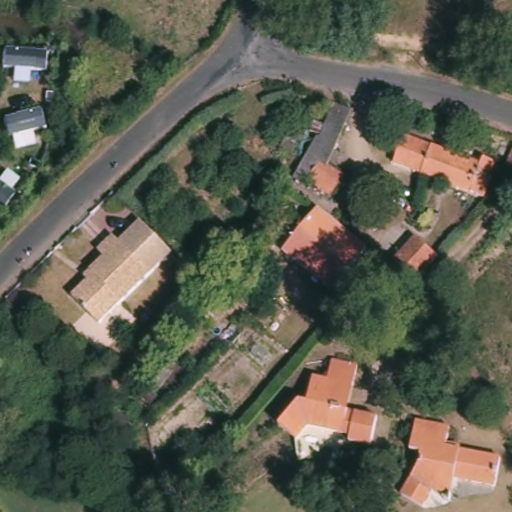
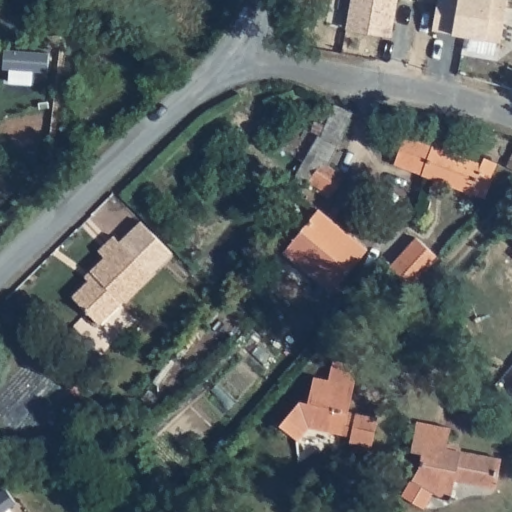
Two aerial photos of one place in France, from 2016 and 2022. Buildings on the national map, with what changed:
new [(347,27),(351,0),(396,0),(391,36),(347,27)]
new [(506,0),(500,41),(433,30),(437,0),(506,0)]
unchanged [(352,114),(329,167),(345,179),(329,200),(303,181),(299,186),(291,181),(317,139),(321,140),(335,106),(352,114)]
unchanged [(506,145),(499,158),(485,152),(492,138),(506,145)]
unchanged [(475,167),(478,161),(491,167),(484,180),(487,183),(478,202),(391,168),(401,140),(475,167)]
unchanged [(510,172),(499,168),(512,143),(512,173),(510,172)]
unchanged [(331,294),(284,254),(318,212),(367,250),(331,294)]
unchanged [(116,244),(140,220),(173,253),(149,276),(116,244)]
unchanged [(149,276),(94,327),(67,301),(90,278),(85,273),(100,259),(94,252),(109,237),(149,276)]
unchanged [(416,237),(441,258),(414,289),(390,269),(416,237)]
unchanged [(309,430),(298,443),(278,428),(300,404),(308,406),(315,379),(331,383),(336,363),(358,368),(353,390),(348,414),(342,438),(309,430)]
unchanged [(432,496),(424,512),(402,498),(420,469),(422,457),(410,453),(417,423),(449,430),(446,450),(500,460),(494,490),(454,482),(450,505),(432,496)]
unchanged [(207,507),(202,512),(193,512),(190,509),(199,500),(207,507)]

